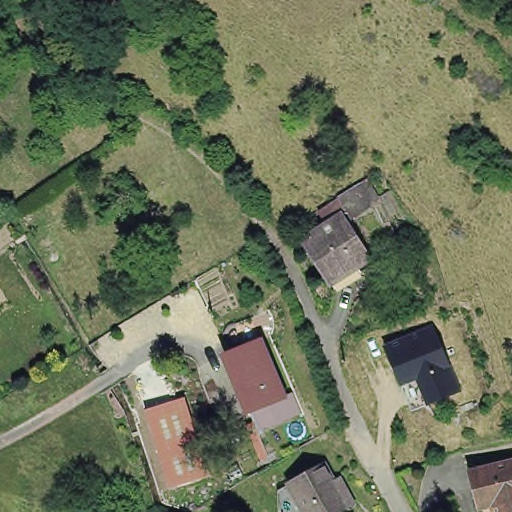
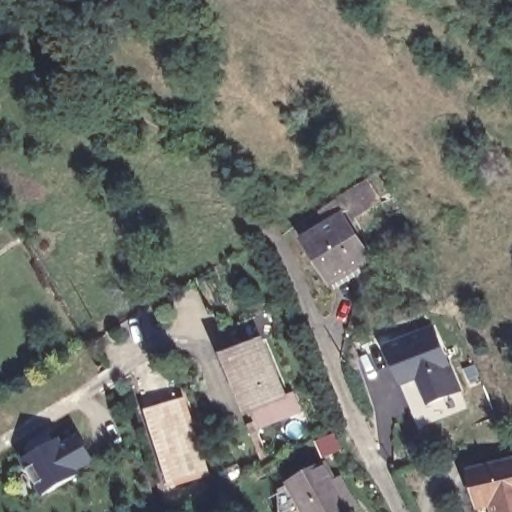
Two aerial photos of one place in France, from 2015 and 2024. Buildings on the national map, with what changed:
unchanged [(341,218),(368,260),(333,282),(306,241),(341,218)]
unchanged [(260,435),(251,412),(228,356),(240,351),(227,338),(236,325),(252,318),(261,341),(285,396),(292,392),(300,412),(290,416),(293,422),(260,435)]
unchanged [(432,326),(462,394),(428,407),(416,381),(401,387),(385,347),(432,326)]
unchanged [(186,399),(210,478),(170,488),(144,411),(186,399)]
new [(95,462),(80,471),(82,476),(42,498),(21,461),(62,438),(65,443),(81,435),(95,462)]
unchanged [(491,502),(479,506),(468,467),(512,455),(512,512),(494,512),(491,502)]
unchanged [(350,503),(333,512),(306,512),(305,510),(289,479),(326,459),(335,477),(340,473),(347,487),(355,500),(350,503)]

